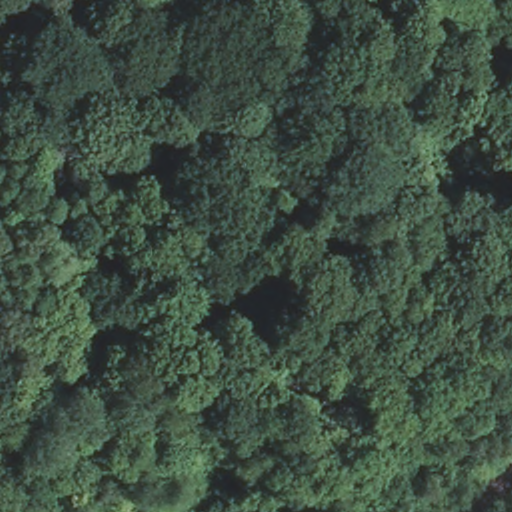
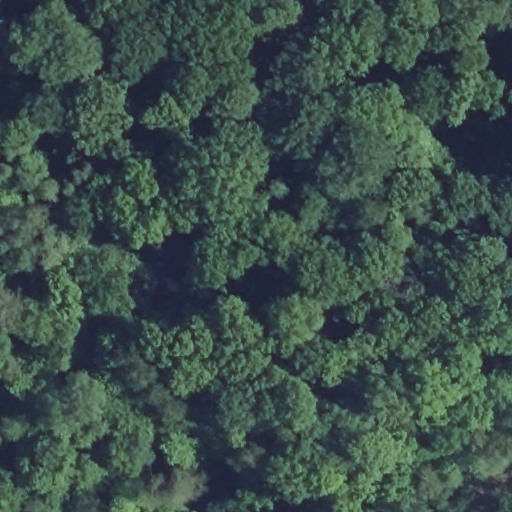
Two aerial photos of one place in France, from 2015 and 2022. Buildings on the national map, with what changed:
[]

